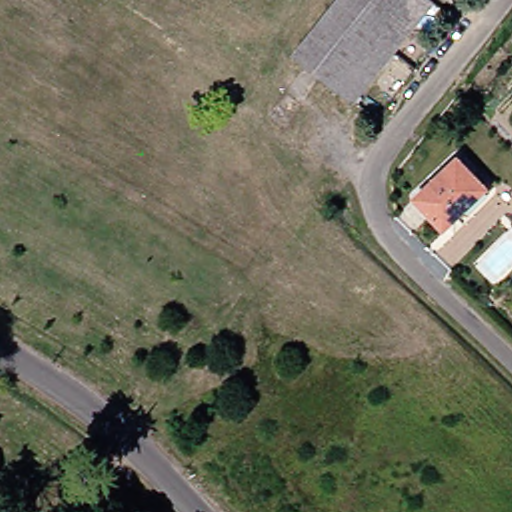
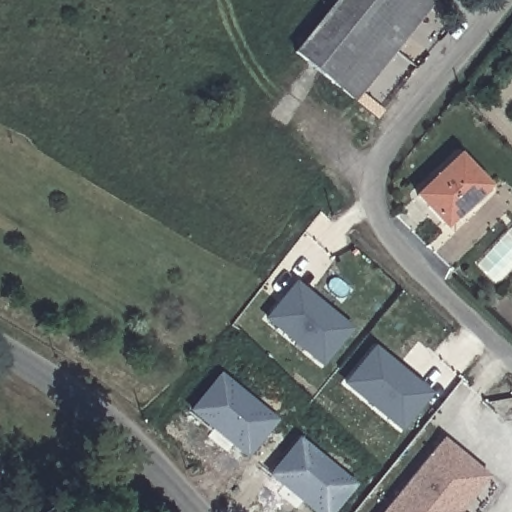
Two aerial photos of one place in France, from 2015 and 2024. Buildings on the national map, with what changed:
unchanged [(290,54),(330,0),(425,0),(428,3),(350,102),(290,54)]
unchanged [(462,210),(459,207),(439,224),(413,198),(450,161),(473,184),(480,190),(462,210)]
new [(325,356),(270,312),(292,286),(298,277),(311,288),(352,321),(325,356)]
new [(425,393),(403,419),(350,375),(377,341),(418,375),(431,385),(425,393)]
new [(220,373),(277,421),(246,458),(189,410),(220,373)]
new [(298,438),(355,486),(334,512),(312,512),(267,476),(298,438)]
new [(490,477),(462,512),(382,512),(442,438),(490,477)]

